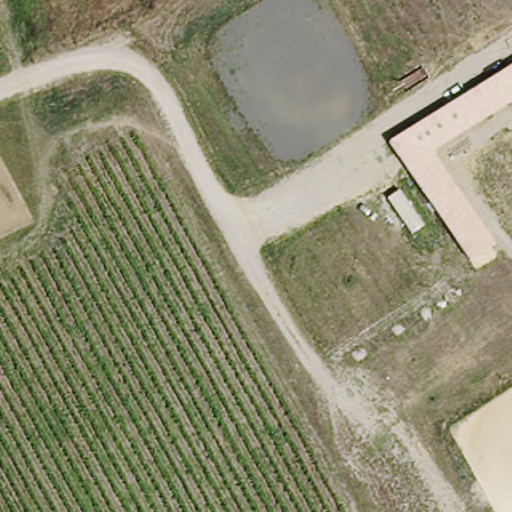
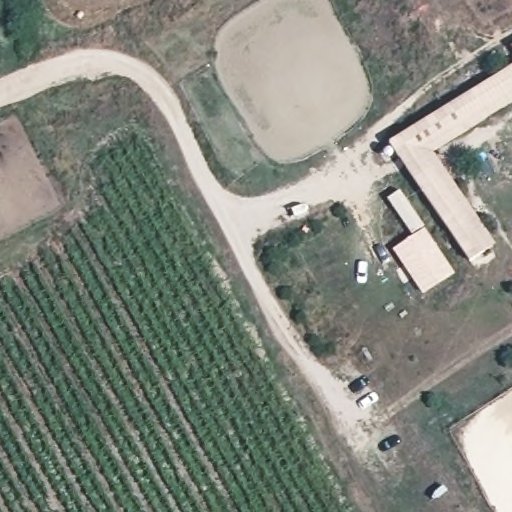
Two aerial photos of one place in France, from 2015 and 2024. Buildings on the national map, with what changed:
unchanged [(432,152),(495,244),(469,261),(389,144),(512,67),(512,101),(432,152)]
new [(401,277),(392,250),(412,236),(386,199),(399,190),(455,273),(422,294),(401,277)]

